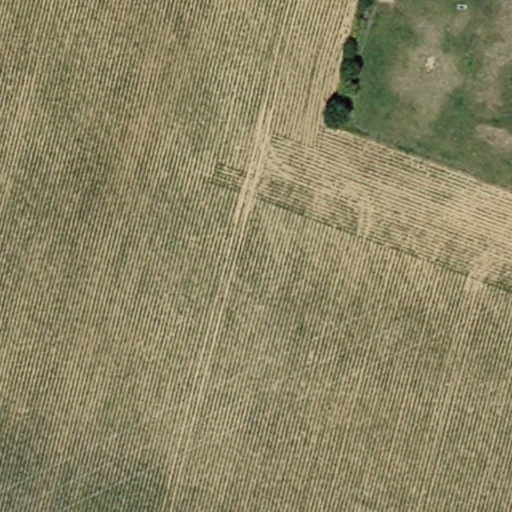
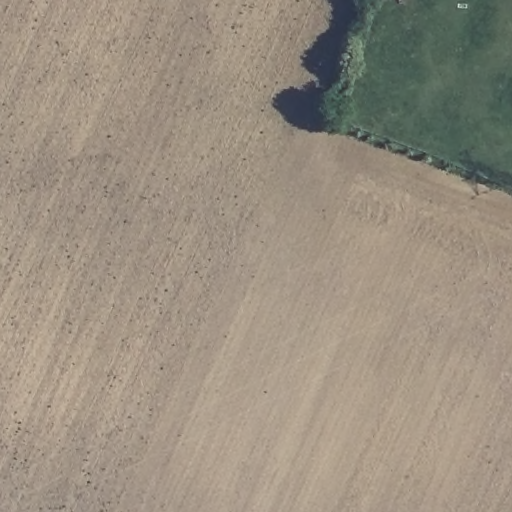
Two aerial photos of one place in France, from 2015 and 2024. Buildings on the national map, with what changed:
[]

